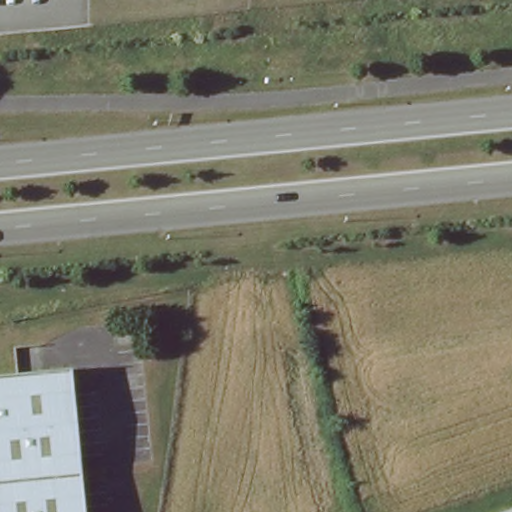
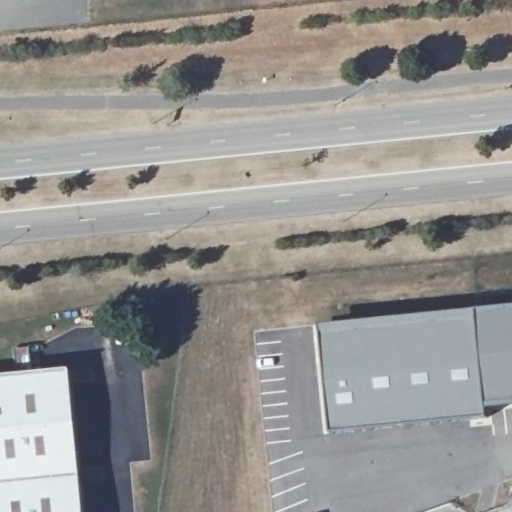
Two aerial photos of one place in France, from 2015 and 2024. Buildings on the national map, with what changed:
new [(512,308),(512,407),(489,410),(477,311),(512,308)]
new [(485,418),(331,433),(322,331),(477,311),(489,410),(485,418)]
unchanged [(67,364),(79,512),(0,512),(0,370),(67,364)]

